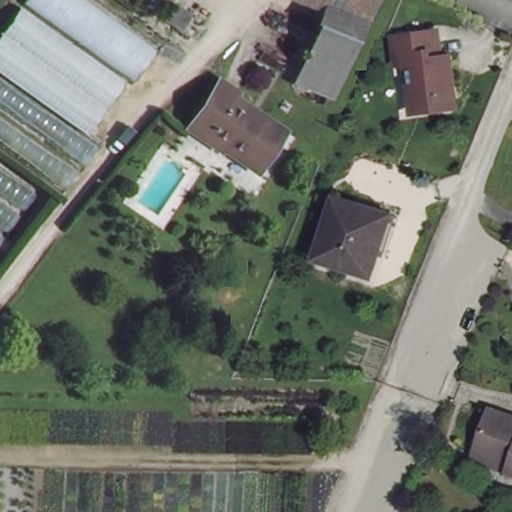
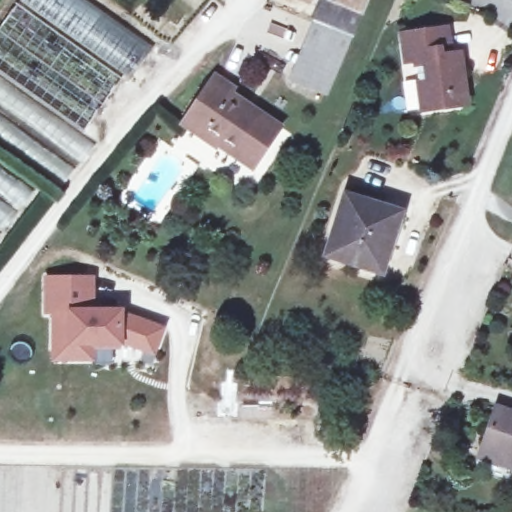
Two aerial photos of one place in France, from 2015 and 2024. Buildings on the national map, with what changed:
unchanged [(0,25),(20,0),(85,0),(150,48),(61,176),(0,132),(0,25)]
unchanged [(188,9),(177,26),(171,21),(161,15),(170,0),(173,0),(188,9)]
unchanged [(365,13),(345,57),(314,43),(331,0),(365,13)]
unchanged [(365,13),(331,0),(330,0),(371,0),(365,13)]
unchanged [(442,47),(450,46),(455,81),(447,83),(450,98),(417,103),(409,51),(400,53),(396,28),(439,22),(442,47)]
unchanged [(314,43),(345,57),(325,105),(286,89),(307,40),(314,43)]
unchanged [(220,74),(238,87),(232,94),(262,118),(266,113),(282,126),(271,141),(254,161),(223,137),(218,143),(195,125),(187,119),(208,90),(220,74)]
unchanged [(0,230),(0,172),(27,192),(0,230)]
unchanged [(398,208),(382,268),(323,253),(340,193),(398,208)]
new [(94,278),(95,308),(125,309),(125,312),(164,332),(162,368),(52,368),(53,310),(44,310),(45,276),(94,278)]
unchanged [(481,445),(495,403),(512,409),(512,467),(478,455),(481,445)]

